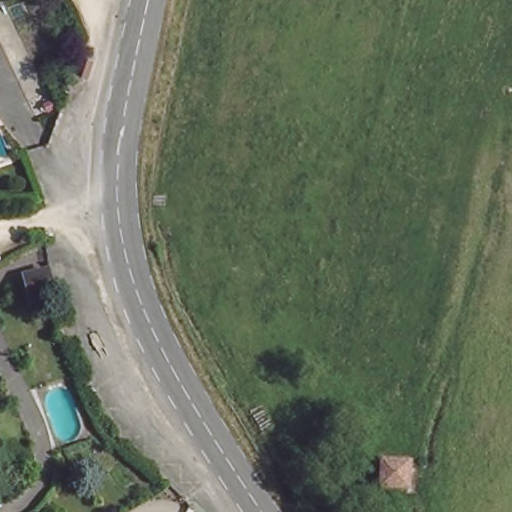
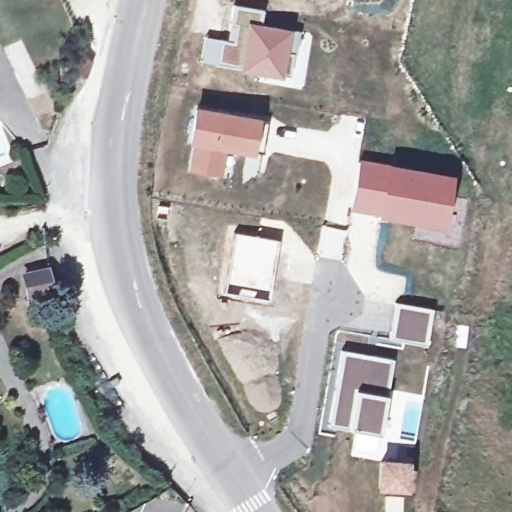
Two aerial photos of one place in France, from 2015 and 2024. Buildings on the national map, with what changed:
new [(205,35),(226,39),(233,3),(264,9),(262,23),(248,21),(238,70),(200,62),(205,35)]
new [(248,21),(262,23),(301,30),(296,55),(293,54),(292,58),(286,57),(282,77),(238,70),(248,21)]
new [(186,172),(191,145),(187,145),(194,105),(260,116),(253,154),(226,151),(222,178),(186,172)]
new [(446,176),(439,224),(350,208),(358,161),(446,176)]
new [(236,232),(281,240),(271,293),(228,286),(236,232)]
unchanged [(55,286),(38,295),(30,279),(45,270),(55,286)]
new [(394,301),(433,307),(426,345),(389,341),(394,301)]
new [(340,348),(393,357),(375,457),(351,454),(354,431),(334,429),(334,432),(321,431),(340,348)]
unchanged [(404,460),(403,485),(377,483),(378,459),(404,460)]

